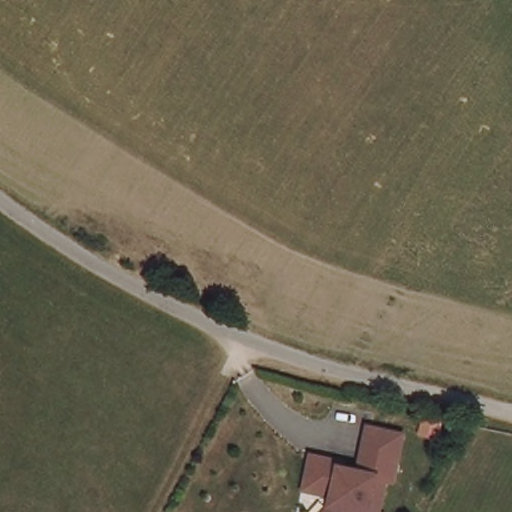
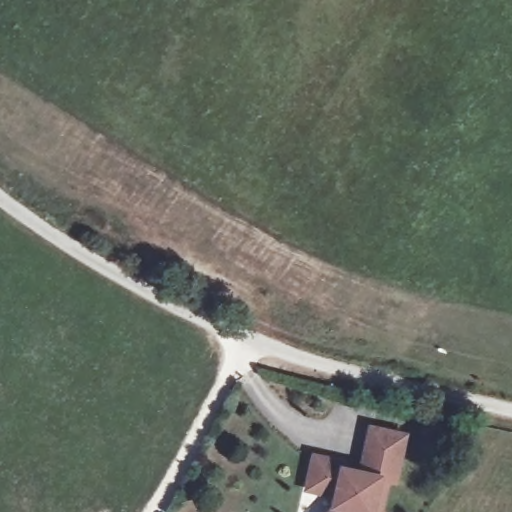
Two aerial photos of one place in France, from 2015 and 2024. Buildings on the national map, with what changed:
unchanged [(334,498),(305,488),(315,457),(346,468),(344,473),(355,477),(352,481),(360,483),(377,437),(410,448),(395,492),(387,489),(379,512),(329,512),(330,511),(334,498)]

